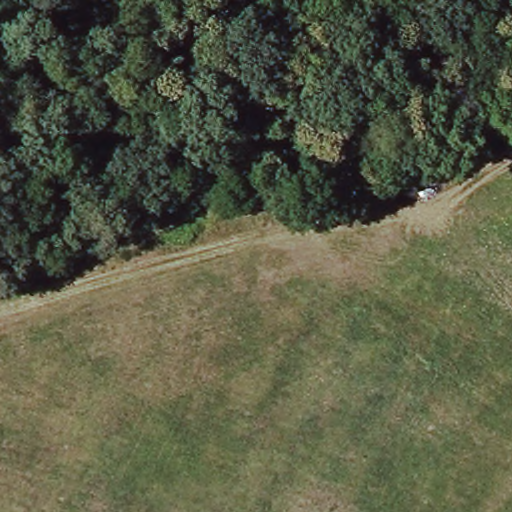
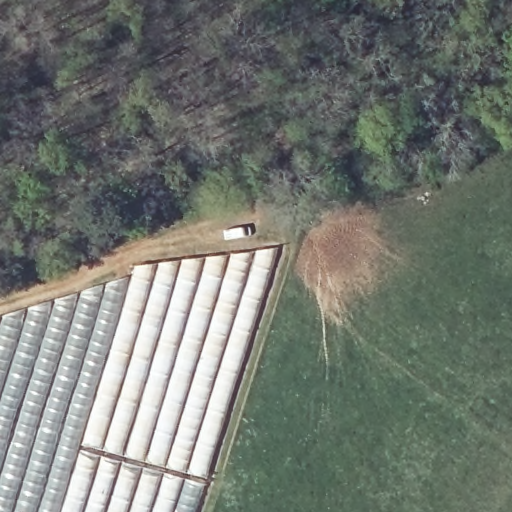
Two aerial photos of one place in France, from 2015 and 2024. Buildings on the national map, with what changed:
new [(0,318),(128,276),(130,276),(131,266),(280,246),(267,291),(227,415),(206,484),(197,512),(0,512),(0,318)]

